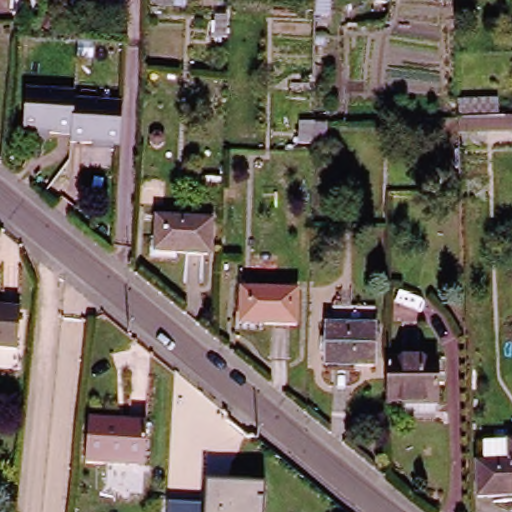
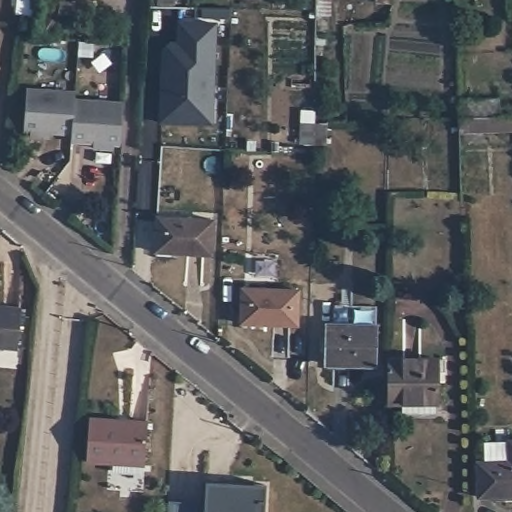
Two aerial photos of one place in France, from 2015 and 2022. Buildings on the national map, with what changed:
unchanged [(12,15),(13,0),(31,0),(29,16),(12,15)]
unchanged [(318,15),(318,0),(330,0),(329,15),(318,15)]
unchanged [(376,1),(376,0),(393,0),(393,2),(376,1)]
unchanged [(226,35),(216,35),(217,16),(228,16),(226,35)]
new [(166,53),(173,46),(181,47),(181,25),(218,27),(214,122),(178,121),(178,98),(163,97),(166,53)]
unchanged [(6,82),(52,86),(51,94),(48,129),(2,125),(6,82)]
unchanged [(97,99),(94,141),(48,138),(48,129),(51,94),(97,99)]
unchanged [(499,99),(500,117),(512,117),(512,131),(469,132),(459,132),(459,119),(465,119),(464,100),(499,99)]
unchanged [(326,122),(326,144),(315,144),(305,144),(305,122),(316,122),(326,122)]
unchanged [(208,255),(151,251),(153,217),(209,220),(208,255)]
unchanged [(293,320),(236,318),(238,284),(294,285),(293,320)]
unchanged [(13,350),(0,348),(0,307),(18,309),(13,350)]
unchanged [(372,365),(322,364),(323,326),(373,327),(372,365)]
unchanged [(401,415),(401,405),(389,405),(389,360),(439,360),(439,404),(438,404),(438,415),(401,415)]
unchanged [(142,464),(83,461),(84,418),(144,421),(142,464)]
unchanged [(483,461),(483,442),(512,442),(512,496),(474,497),(474,461),(483,461)]
unchanged [(208,475),(266,481),(262,512),(204,512),(208,475)]
unchanged [(164,500),(201,501),(200,512),(166,512),(164,500)]

